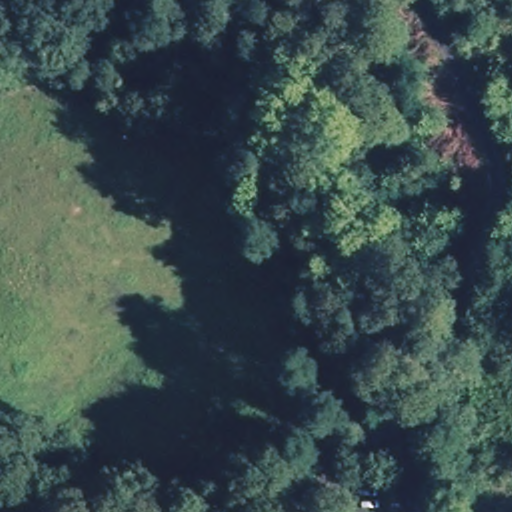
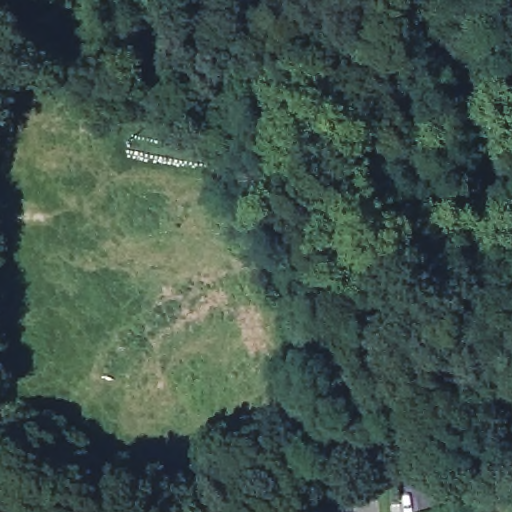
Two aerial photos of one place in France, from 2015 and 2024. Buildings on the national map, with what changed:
[]

